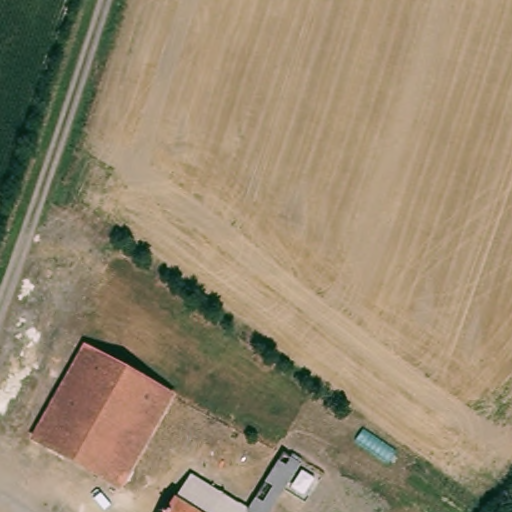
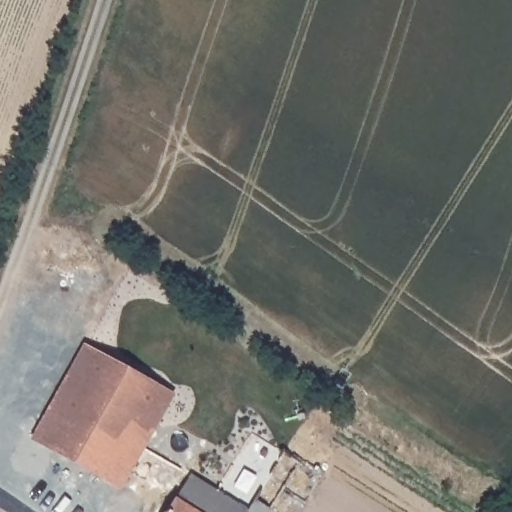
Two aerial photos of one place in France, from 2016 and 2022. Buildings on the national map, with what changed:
unchanged [(112,484),(28,437),(79,344),(88,349),(157,386),(167,392),(112,484)]
unchanged [(266,512),(244,512),(278,458),(293,468),(283,484),(266,512)]
unchanged [(238,512),(165,512),(186,480),(238,512)]

